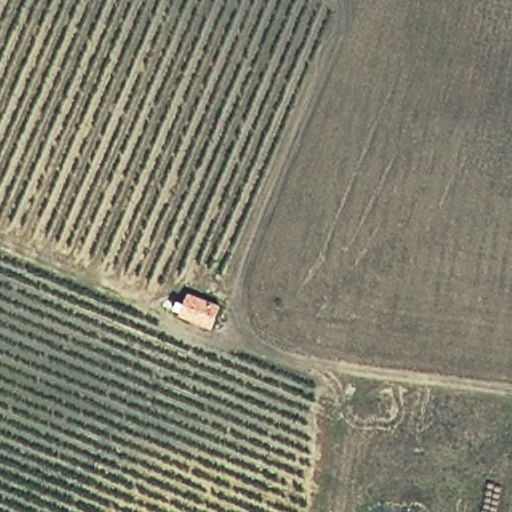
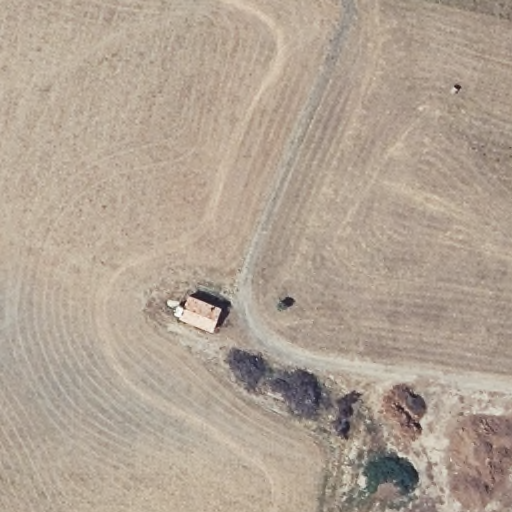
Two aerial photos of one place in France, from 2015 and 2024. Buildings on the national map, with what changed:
unchanged [(188,293),(222,306),(213,330),(180,318),(188,293)]

